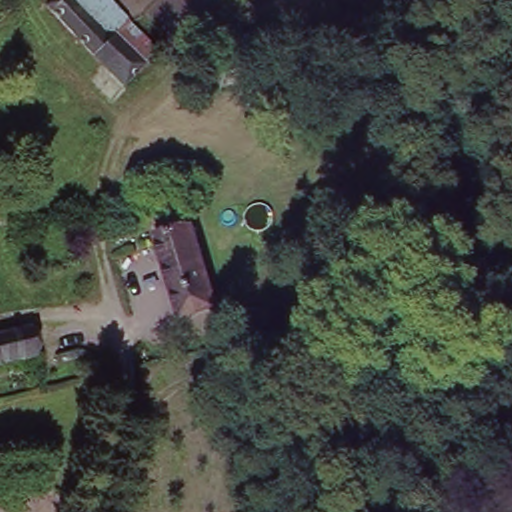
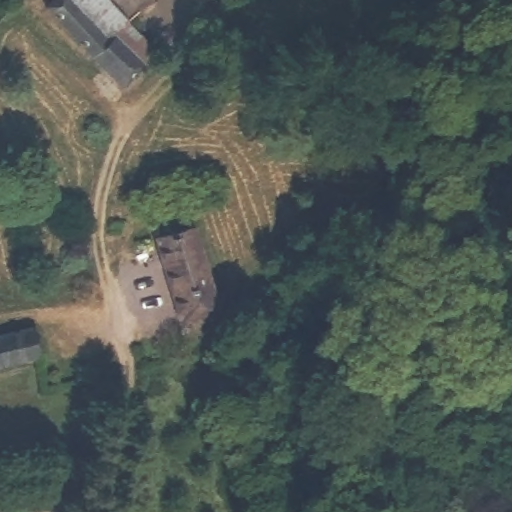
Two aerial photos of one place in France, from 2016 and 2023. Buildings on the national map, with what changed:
unchanged [(70,25),(42,0),(113,0),(141,24),(110,59),(100,71),(60,40),(70,25)]
unchanged [(212,0),(220,0),(217,4),(212,0)]
unchanged [(214,88),(209,60),(265,48),(271,73),(214,88)]
unchanged [(321,70),(327,91),(301,97),(296,77),(321,70)]
unchanged [(214,296),(178,306),(154,230),(190,221),(206,268),(214,296)]
unchanged [(38,358),(0,365),(0,332),(32,327),(38,358)]

